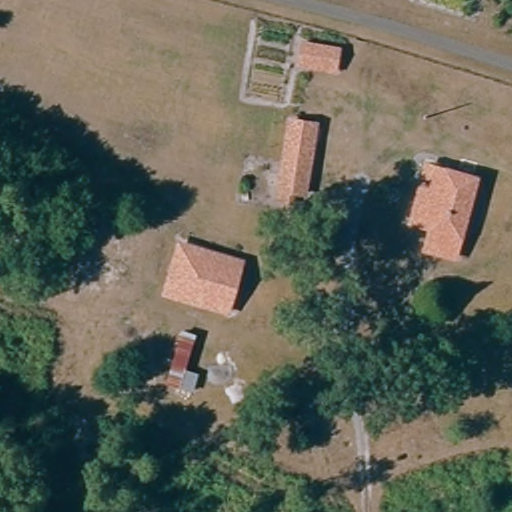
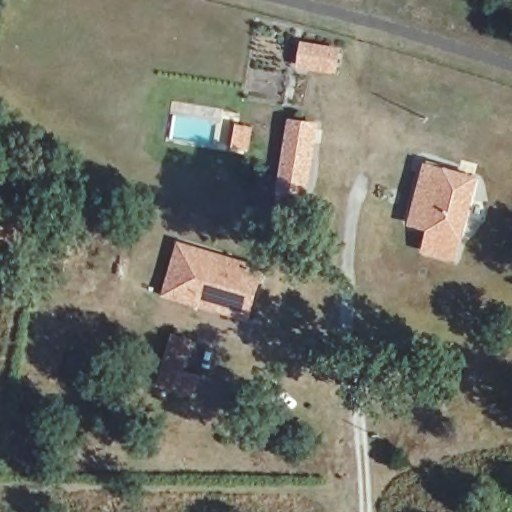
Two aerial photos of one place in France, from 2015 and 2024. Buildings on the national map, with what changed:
unchanged [(340,76),(305,68),(310,47),(345,55),(340,76)]
unchanged [(302,195),(288,193),(287,204),(276,202),(289,122),(313,126),(302,195)]
unchanged [(463,237),(414,225),(429,166),(478,179),(463,237)]
unchanged [(232,309),(169,289),(184,241),(246,260),(232,309)]
unchanged [(182,385),(170,381),(187,328),(199,332),(182,385)]

